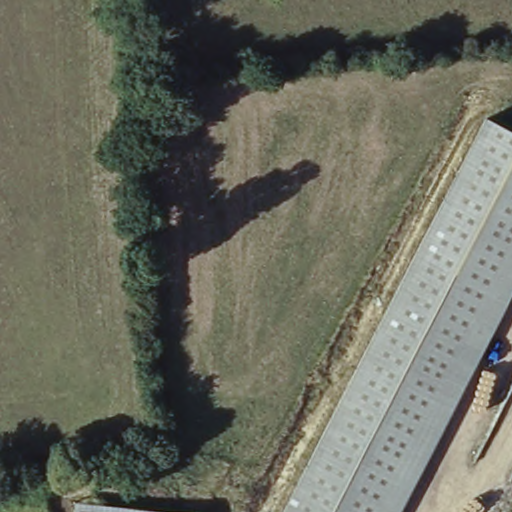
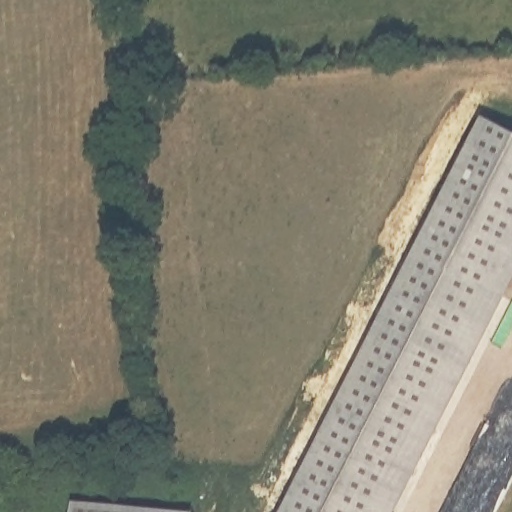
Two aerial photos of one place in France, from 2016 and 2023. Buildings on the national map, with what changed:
unchanged [(512,131),(512,284),(395,512),(283,512),(485,117),(512,131)]
unchanged [(192,512),(73,512),(74,502),(192,512)]

